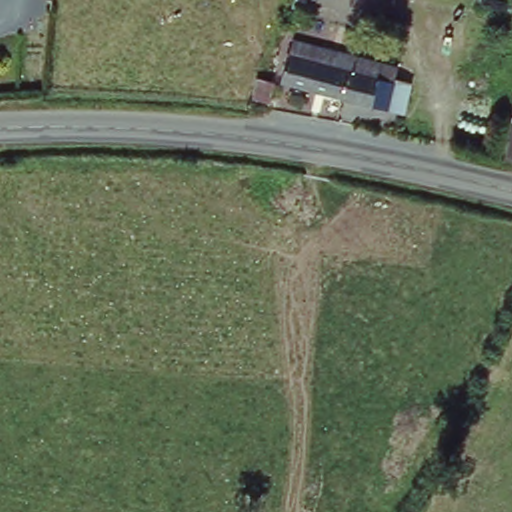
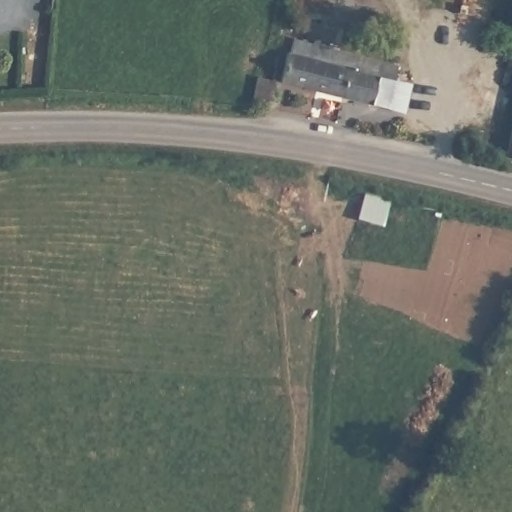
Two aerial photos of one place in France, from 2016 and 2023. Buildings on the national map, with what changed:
unchanged [(386,105),(278,81),(283,55),(277,54),(282,38),(336,50),(342,51),(378,59),(395,63),(392,80),(407,85),(402,109),(386,105)]
unchanged [(248,104),(254,82),(268,84),(263,106),(248,104)]
unchanged [(499,151),(512,96),(512,154),(499,151)]

